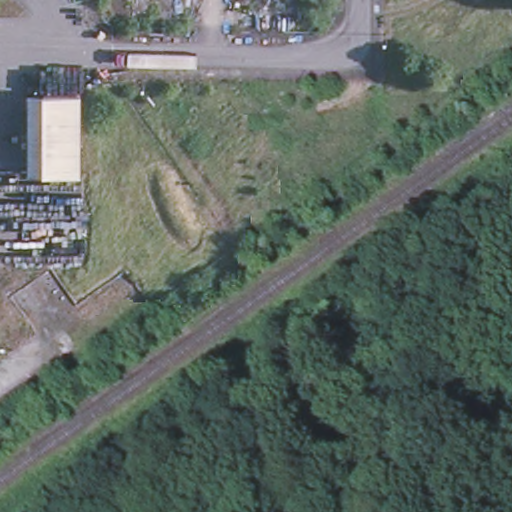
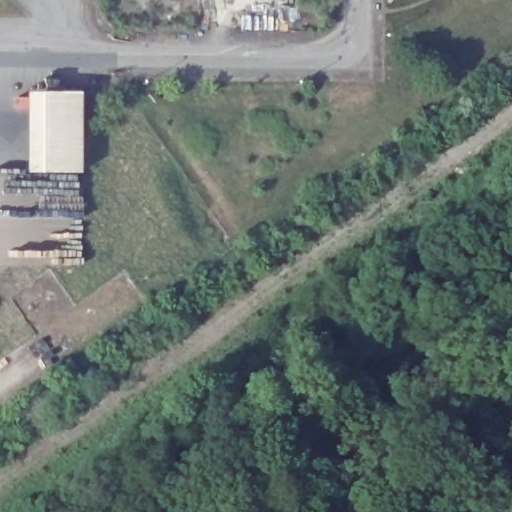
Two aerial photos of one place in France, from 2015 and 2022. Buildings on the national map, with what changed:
unchanged [(81,91),(81,173),(28,172),(27,91),(81,91)]

